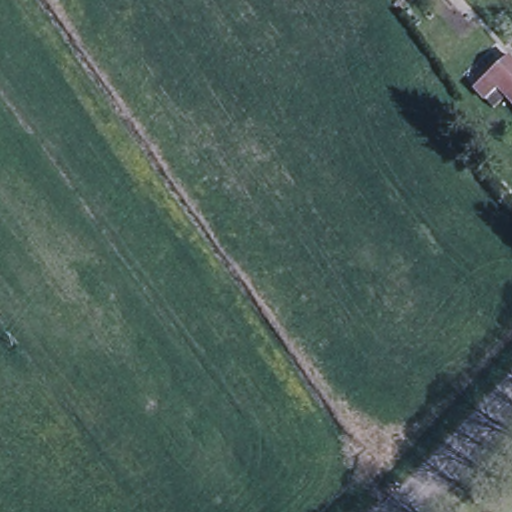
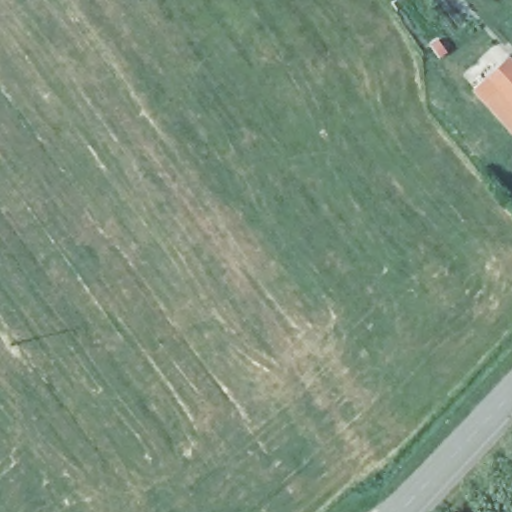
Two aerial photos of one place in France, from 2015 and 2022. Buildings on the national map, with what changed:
unchanged [(496,44),(511,61),(490,78),(501,90),(488,102),(477,91),(470,97),(455,81),(496,44)]
unchanged [(511,61),(512,62),(512,102),(501,90),(490,78),(511,61)]

